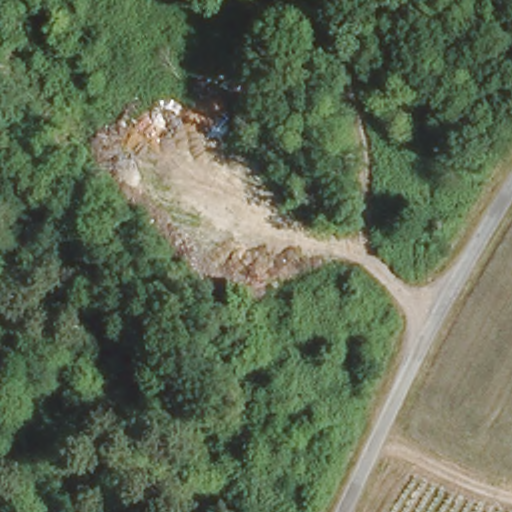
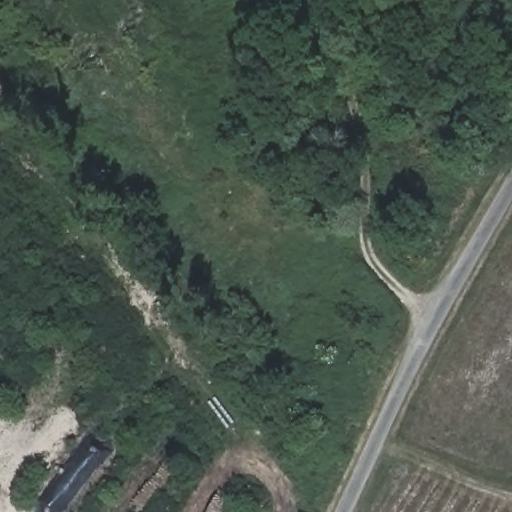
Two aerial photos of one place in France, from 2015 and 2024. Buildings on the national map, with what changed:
[]

